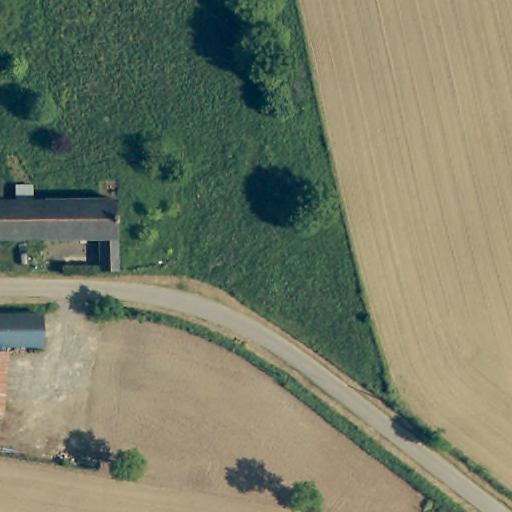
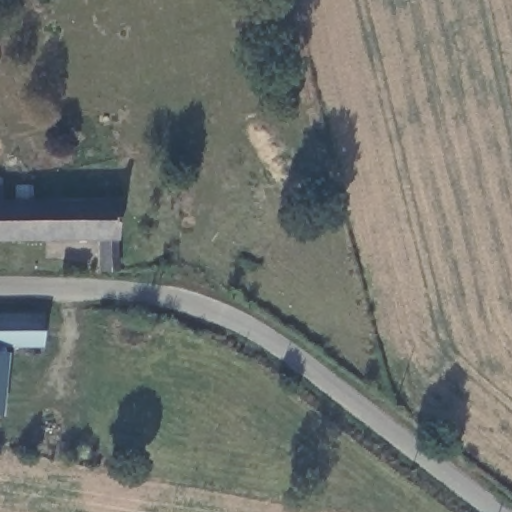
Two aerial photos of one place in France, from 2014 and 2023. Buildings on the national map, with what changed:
unchanged [(117,202),(119,271),(100,271),(100,266),(100,240),(0,241),(0,202),(117,202)]
unchanged [(41,316),(40,346),(0,346),(0,316),(41,316)]
unchanged [(6,354),(0,408),(0,353),(6,354)]

